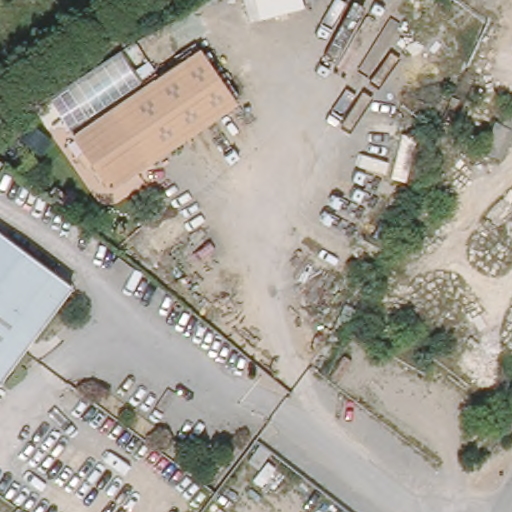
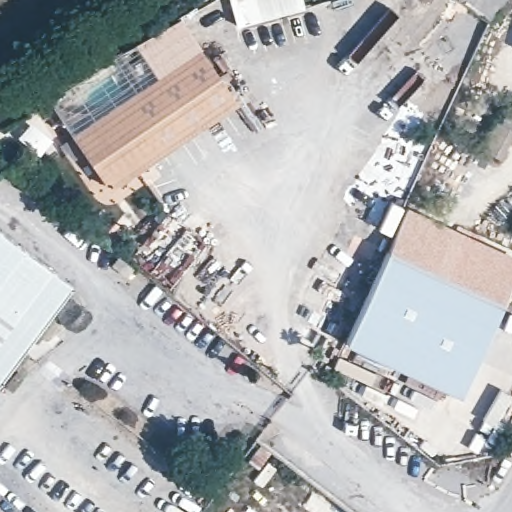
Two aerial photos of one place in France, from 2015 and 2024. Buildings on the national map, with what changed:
new [(257,19),(235,25),(229,0),(252,0),(257,19)]
unchanged [(257,22),(252,0),(301,0),(304,10),(257,22)]
new [(180,15),(235,98),(230,101),(192,48),(155,75),(134,42),(180,15)]
unchanged [(192,48),(230,101),(112,190),(70,137),(192,48)]
unchanged [(496,117),(512,126),(512,143),(505,161),(477,147),(496,117)]
new [(405,200),(512,248),(512,269),(459,389),(339,336),(405,200)]
unchanged [(0,384),(0,230),(76,285),(0,384)]

